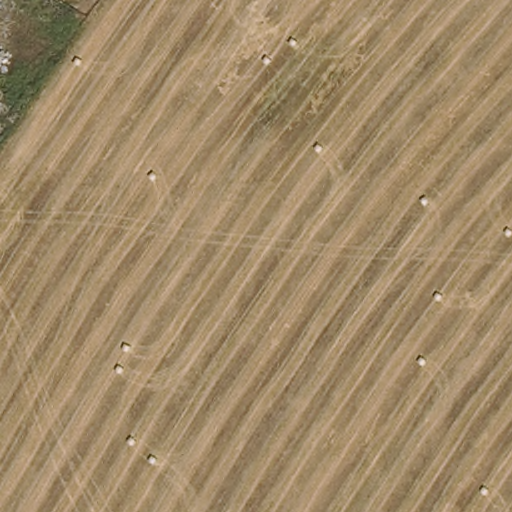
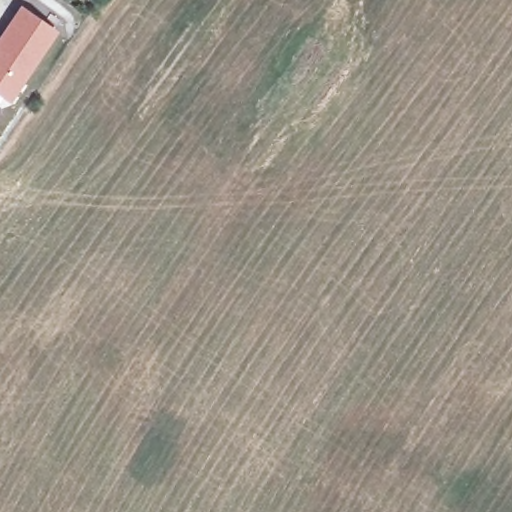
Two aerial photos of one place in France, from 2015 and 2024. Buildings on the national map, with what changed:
new [(0,36),(21,6),(59,33),(10,103),(0,96),(0,36)]

